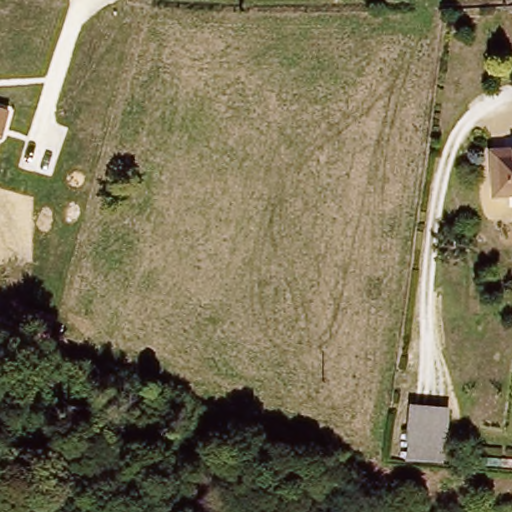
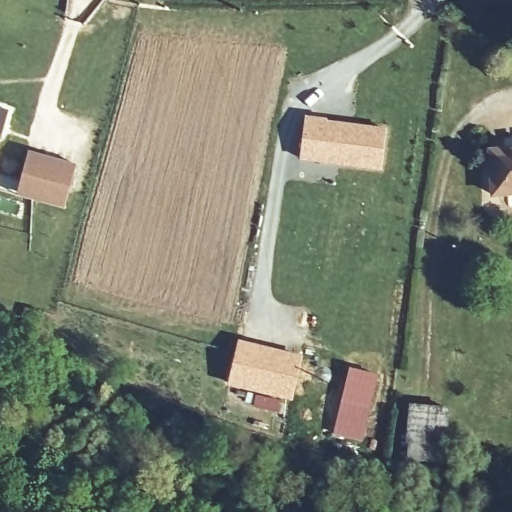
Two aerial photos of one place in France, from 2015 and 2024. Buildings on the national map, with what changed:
unchanged [(3,139),(0,138),(0,107),(10,110),(3,139)]
new [(306,117),(327,120),(327,122),(387,130),(381,169),(301,158),(306,117)]
unchanged [(489,196),(487,155),(512,153),(512,194),(489,196)]
new [(28,155),(76,169),(68,197),(20,184),(28,155)]
new [(242,340),(302,355),(292,396),(232,381),(242,340)]
new [(352,369),(378,375),(370,406),(344,400),(352,369)]
unchanged [(409,404),(447,407),(444,441),(441,441),(439,458),(404,455),(406,438),(409,404)]
unchanged [(140,468),(71,444),(82,414),(151,438),(140,468)]

